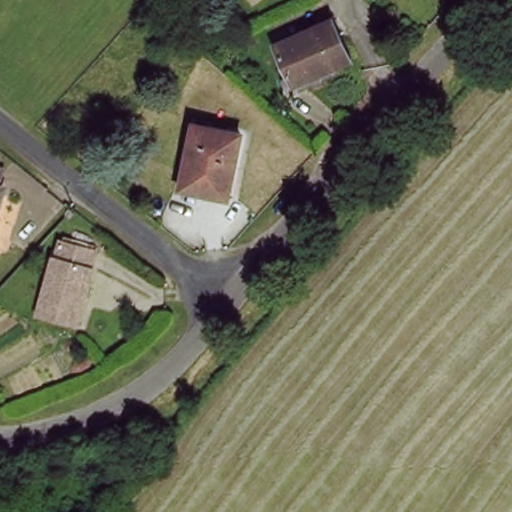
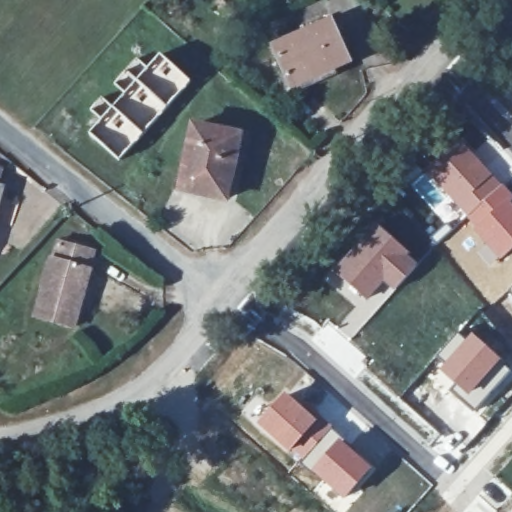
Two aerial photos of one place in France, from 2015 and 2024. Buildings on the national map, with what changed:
unchanged [(325,23),(355,61),(319,86),(311,78),(294,89),(273,59),(325,23)]
new [(99,119),(89,109),(102,96),(112,105),(122,92),(112,83),(127,68),(137,76),(159,53),(191,81),(119,161),(87,133),(99,119)]
unchanged [(194,123),(240,135),(221,199),(188,190),(194,160),(185,158),(194,123)]
new [(458,139),(502,185),(466,218),(423,173),(458,139)]
unchanged [(10,175),(4,189),(9,192),(0,209),(0,170),(10,175)]
new [(466,218),(502,185),(512,195),(512,202),(511,203),(512,203),(512,249),(496,263),(489,255),(487,256),(478,244),(464,223),(468,220),(466,218)]
new [(374,222),(419,264),(394,291),(383,283),(366,301),(332,270),(374,222)]
new [(478,244),(496,263),(512,249),(512,294),(508,290),(491,305),(442,244),(464,223),(478,244)]
unchanged [(55,249),(90,256),(76,318),(40,311),(55,249)]
unchanged [(127,261),(149,278),(140,290),(117,273),(127,261)]
new [(328,323),(370,361),(354,379),(327,356),(338,345),(322,329),(328,323)]
new [(476,409),(466,400),(438,370),(444,362),(436,355),(457,333),(465,340),(471,334),(502,361),(511,371),(476,409)]
new [(287,394),(340,438),(310,471),(259,427),(287,394)]
new [(340,438),(373,469),(343,500),(310,471),(340,438)]

